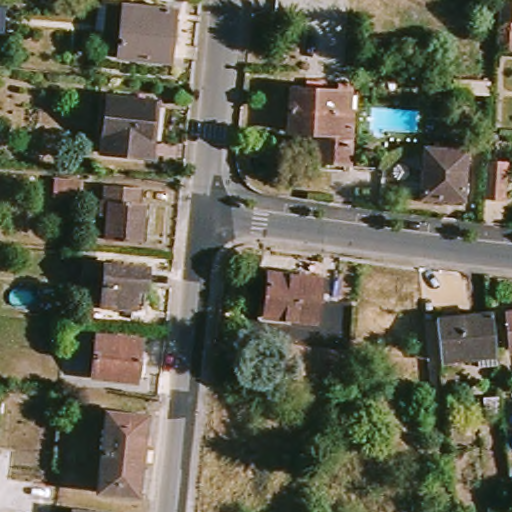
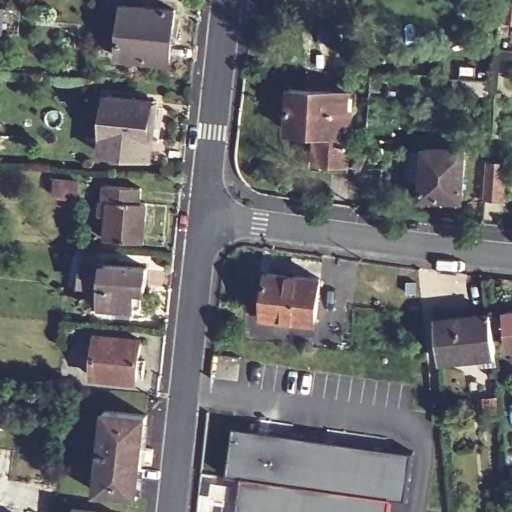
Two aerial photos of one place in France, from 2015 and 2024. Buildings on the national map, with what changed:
unchanged [(179,11),(173,64),(121,57),(123,40),(110,38),(113,7),(127,9),(127,5),(179,11)]
unchanged [(512,5),(512,53),(507,52),(512,5)]
unchanged [(5,7),(2,65),(0,65),(0,7),(5,7)]
unchanged [(479,96),(440,92),(440,85),(432,85),(433,80),(480,85),(479,96)]
unchanged [(314,144),(314,138),(285,136),(287,90),(352,93),(349,168),(311,165),(314,144)]
unchanged [(102,155),(107,97),(152,102),(149,140),(152,140),(150,160),(102,155)]
unchanged [(465,151),(461,200),(422,196),(426,148),(465,151)]
unchanged [(484,165),(504,166),(502,200),(482,198),(484,165)]
unchanged [(77,199),(55,197),(55,183),(78,185),(77,199)]
unchanged [(144,242),(105,239),(108,204),(104,203),(105,185),(148,189),(144,242)]
unchanged [(140,315),(94,310),(98,269),(154,274),(152,295),(142,295),(140,315)]
unchanged [(262,316),(267,273),(319,280),(312,323),(262,316)]
unchanged [(505,311),(512,310),(512,347),(508,347),(505,311)]
unchanged [(495,358),(440,364),(436,325),(491,320),(495,358)]
unchanged [(138,381),(95,376),(100,335),(142,340),(138,381)]
unchanged [(147,416),(139,495),(97,491),(105,411),(147,416)]
new [(410,505),(400,504),(398,512),(240,512),(243,485),(230,482),(235,432),(417,459),(410,505)]

